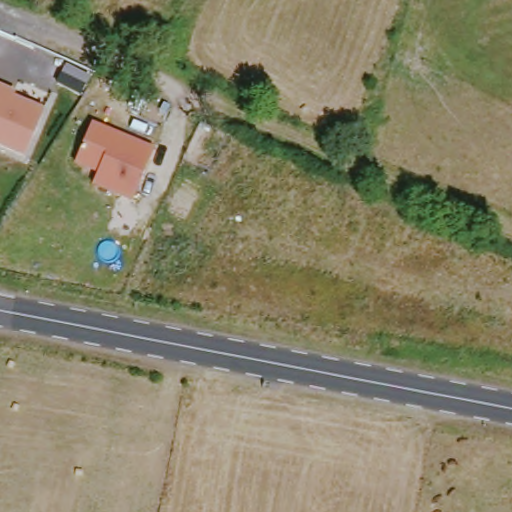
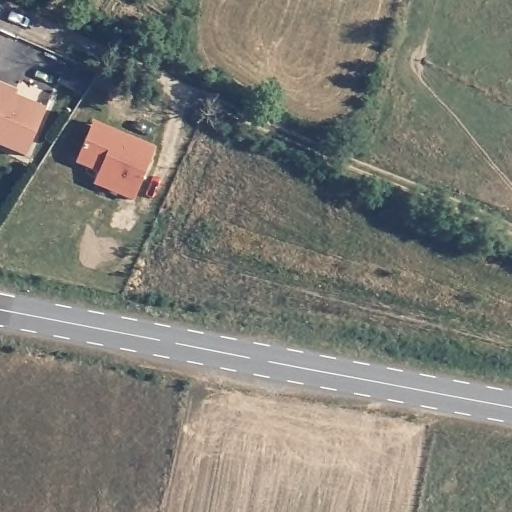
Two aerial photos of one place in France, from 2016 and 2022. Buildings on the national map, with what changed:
unchanged [(23,154),(0,146),(0,83),(16,89),(15,96),(44,108),(23,154)]
unchanged [(131,200),(91,184),(95,169),(75,161),(91,119),(153,144),(131,200)]

